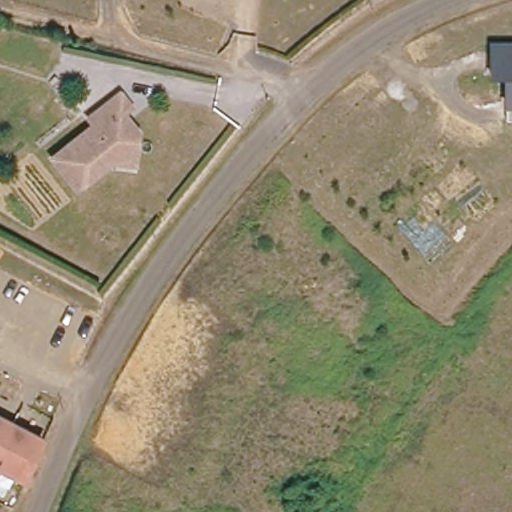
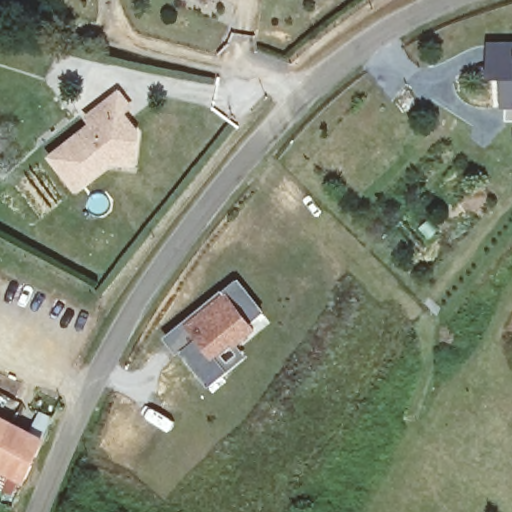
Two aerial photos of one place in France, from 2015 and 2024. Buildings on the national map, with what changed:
unchanged [(508,71),(491,71),(491,39),(512,39),(512,64),(507,64),(508,71)]
unchanged [(508,71),(507,64),(512,64),(512,100),(507,100),(508,71)]
unchanged [(140,159),(119,156),(83,185),(58,152),(98,119),(93,112),(123,88),(133,100),(123,110),(128,117),(133,114),(140,125),(143,125),(140,159)]
unchanged [(507,100),(512,100),(512,115),(507,115),(507,100)]
new [(225,365),(208,379),(179,343),(175,345),(163,330),(219,285),(232,274),(260,307),(247,318),(251,322),(233,336),(244,350),(225,365)]
unchanged [(0,469),(0,423),(53,445),(35,485),(0,469)]

